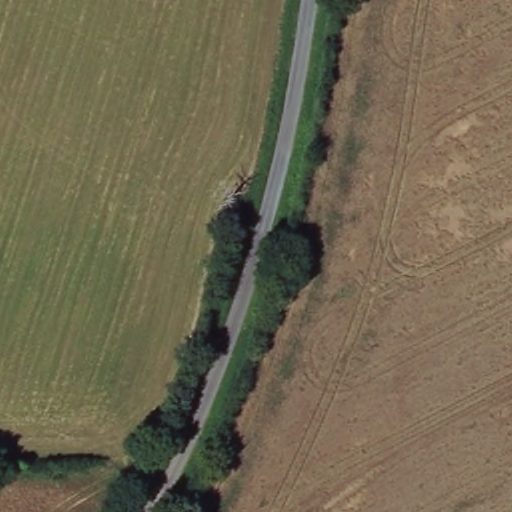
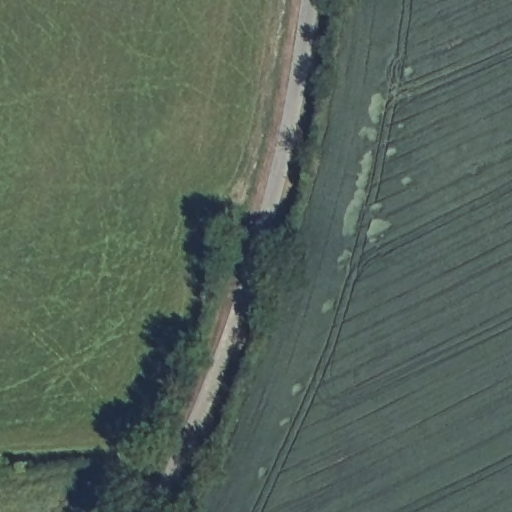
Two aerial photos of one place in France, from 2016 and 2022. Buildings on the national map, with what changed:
[]

